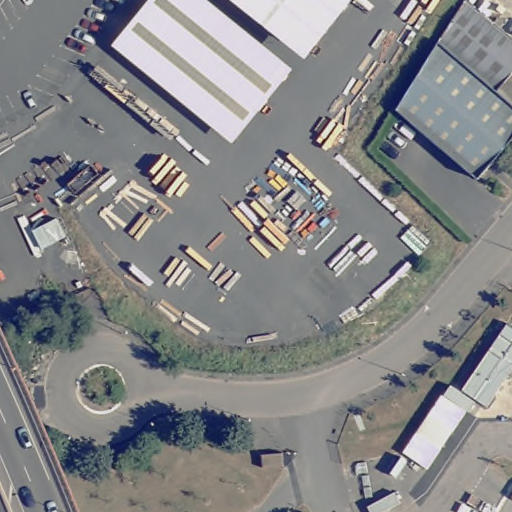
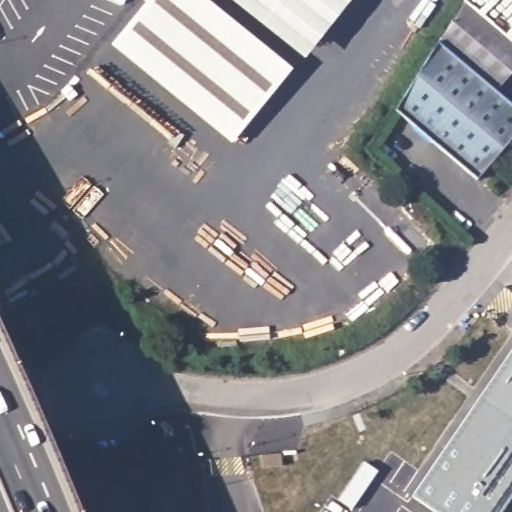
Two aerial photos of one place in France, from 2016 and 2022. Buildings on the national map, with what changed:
unchanged [(232,147),(109,47),(147,0),(209,0),(294,69),(232,147)]
unchanged [(229,0),(350,0),(304,59),(229,0)]
unchanged [(462,0),(468,0),(492,21),(503,30),(512,37),(512,67),(496,86),(438,37),(462,0)]
unchanged [(503,30),(512,19),(512,37),(503,30)]
unchanged [(394,106),(399,96),(438,37),(496,86),(509,96),(512,99),(512,134),(478,176),(394,106)]
demolished [(506,324),(512,328),(512,369),(485,408),(460,391),(506,324)]
new [(512,350),(512,494),(500,512),(435,512),(412,496),(512,350)]
unchanged [(257,465),(257,451),(280,452),(280,466),(257,465)]

